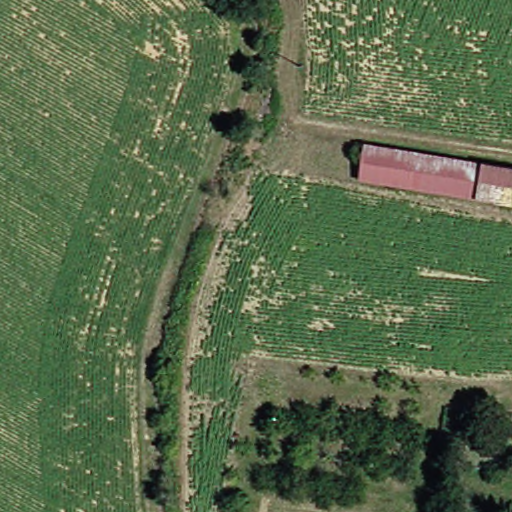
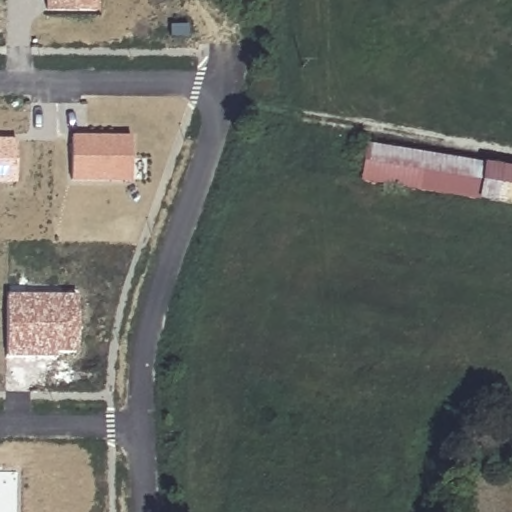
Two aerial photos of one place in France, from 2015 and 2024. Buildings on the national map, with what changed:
new [(43,13),(43,0),(98,0),(98,13),(43,13)]
new [(132,182),(70,181),(70,136),(132,136),(132,182)]
new [(16,184),(0,184),(0,140),(17,140),(16,184)]
unchanged [(369,149),(448,161),(442,192),(365,180),(369,149)]
unchanged [(512,203),(442,192),(448,161),(512,171),(512,203)]
new [(77,352),(57,353),(56,357),(6,358),(7,295),(77,295),(77,352)]
new [(17,512),(0,512),(0,472),(18,472),(17,512)]

